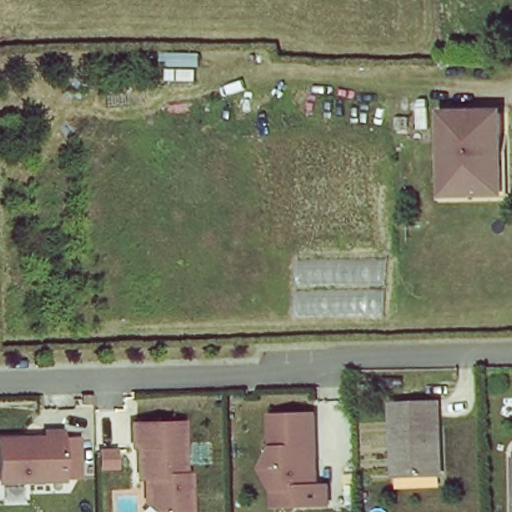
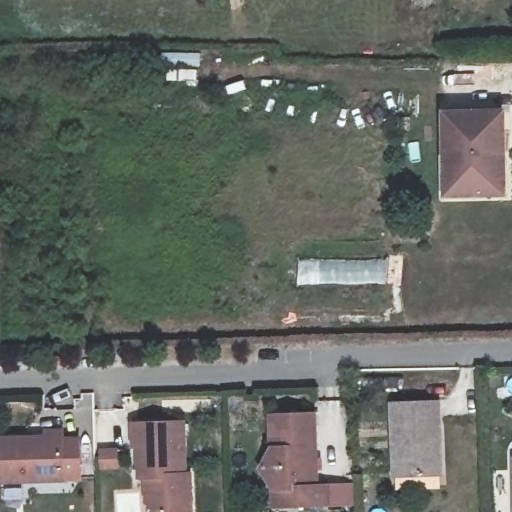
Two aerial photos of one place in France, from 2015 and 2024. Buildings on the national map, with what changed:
unchanged [(503,194),(446,195),(442,116),(501,115),(503,194)]
unchanged [(439,406),(441,476),(397,477),(394,407),(439,406)]
unchanged [(352,503),(324,503),(269,505),(269,487),(253,467),(269,447),(267,414),(311,413),(314,486),(324,485),(351,485),(352,503)]
unchanged [(179,420),(180,472),(185,472),(186,512),(142,511),(141,475),(135,475),(134,444),(129,445),(129,422),(179,420)]
unchanged [(38,432),(36,427),(61,426),(62,432),(76,431),(81,477),(58,477),(59,483),(0,485),(0,433),(38,432)]

